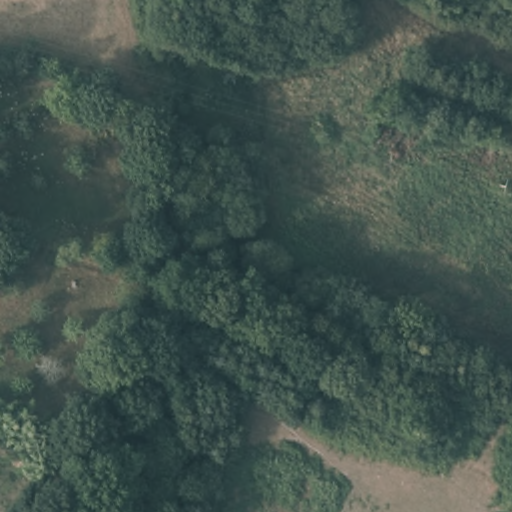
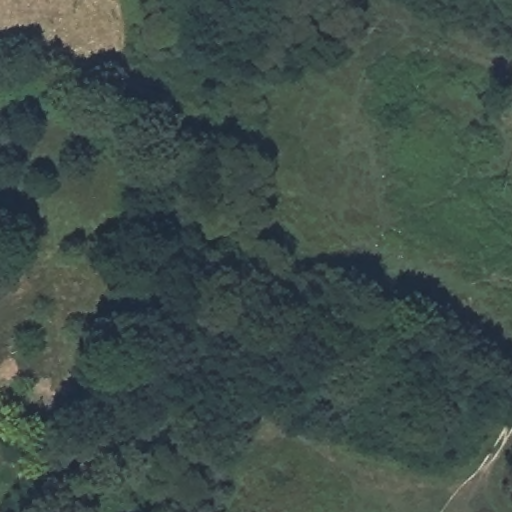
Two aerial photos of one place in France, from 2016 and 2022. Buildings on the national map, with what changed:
unchanged [(72,430),(65,435),(59,431),(55,426),(57,417),(67,416),(72,423),(72,430)]

